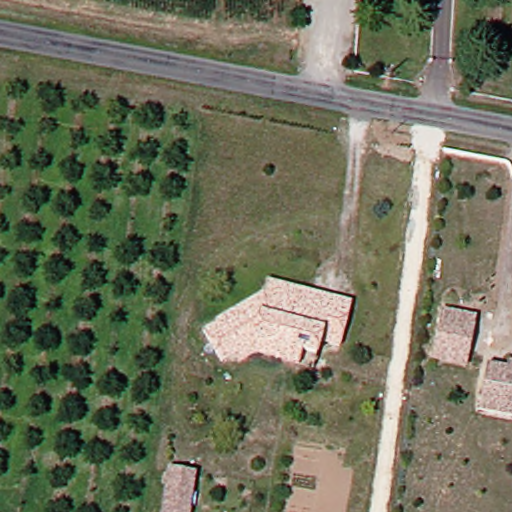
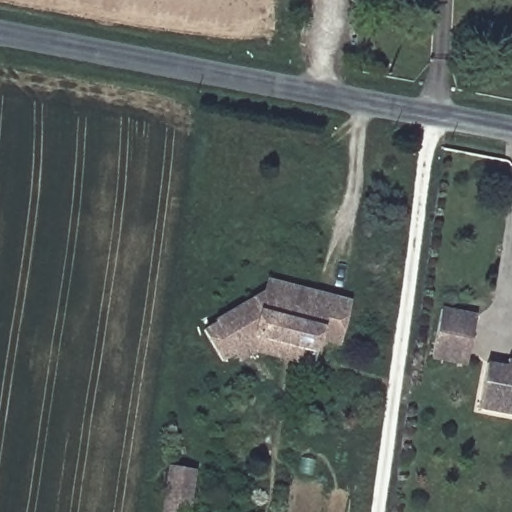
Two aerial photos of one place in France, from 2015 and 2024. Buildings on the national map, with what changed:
unchanged [(344,349),(323,345),(322,357),(257,340),(238,352),(240,358),(227,365),(207,335),(219,327),(219,324),(229,318),(233,318),(249,309),(265,313),(270,292),(271,285),(333,300),(356,306),(344,349)]
unchanged [(433,357),(434,348),(440,308),(475,313),(469,352),(467,361),(433,357)]
unchanged [(319,370),(260,356),(246,365),(240,358),(238,352),(257,340),(322,357),(319,370)]
unchanged [(487,365),(508,367),(509,360),(512,361),(512,415),(481,410),(487,365)]
unchanged [(203,446),(196,505),(171,503),(178,444),(203,446)]

